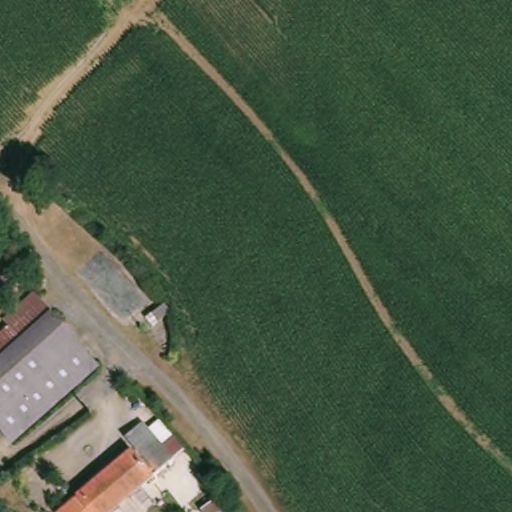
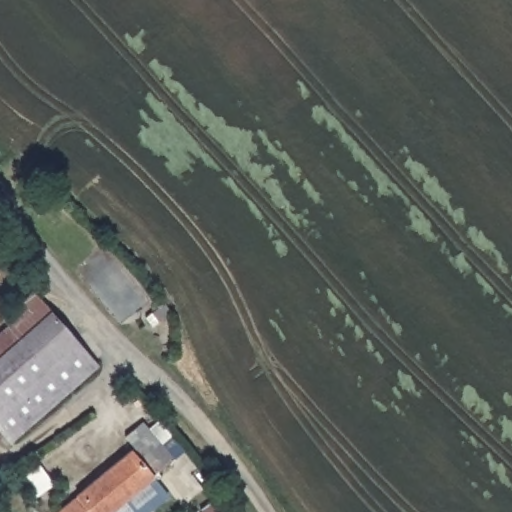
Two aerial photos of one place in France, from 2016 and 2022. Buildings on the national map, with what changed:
unchanged [(0,324),(0,316),(25,294),(28,291),(46,311),(14,339),(1,324),(0,324)]
unchanged [(91,366),(7,445),(0,438),(0,325),(1,324),(14,339),(46,311),(91,366)]
unchanged [(138,459),(142,454),(125,437),(141,422),(158,439),(171,458),(111,512),(65,512),(84,492),(132,451),(138,459)]

